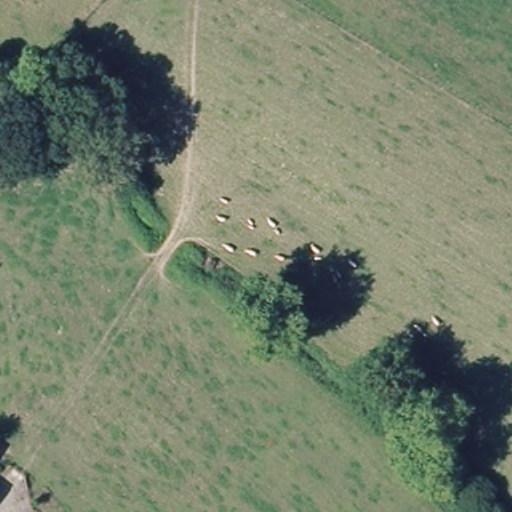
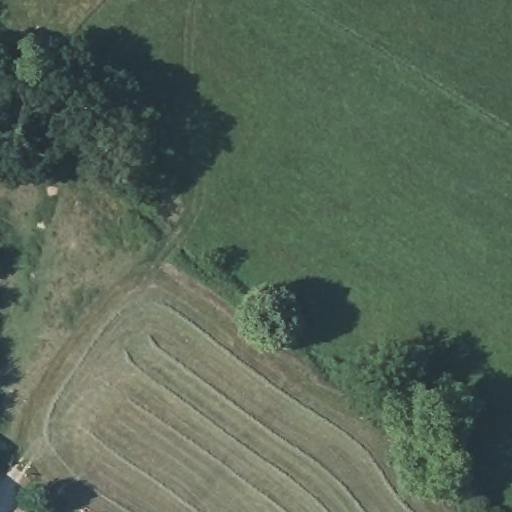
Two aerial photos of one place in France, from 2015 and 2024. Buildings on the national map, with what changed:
unchanged [(0,471),(0,456),(7,461),(0,471)]

